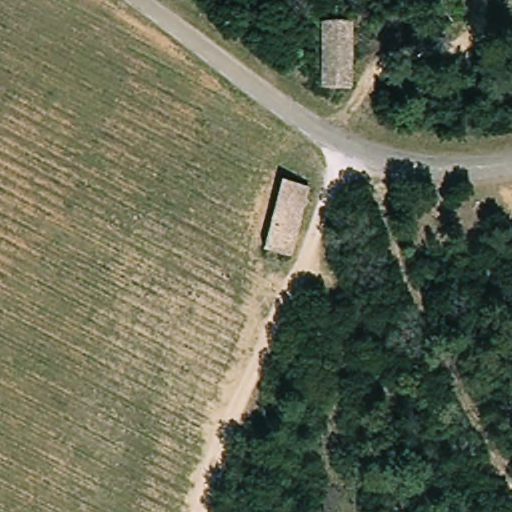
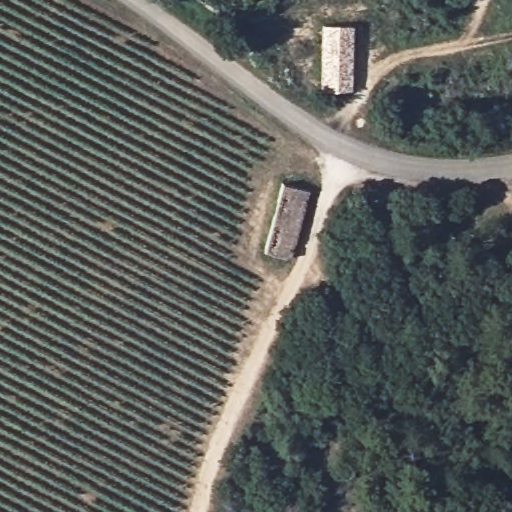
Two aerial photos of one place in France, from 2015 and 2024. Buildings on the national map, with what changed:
unchanged [(326,90),(328,23),(361,25),(359,92),(326,90)]
unchanged [(308,189),(291,257),(266,251),(282,182),(308,189)]

